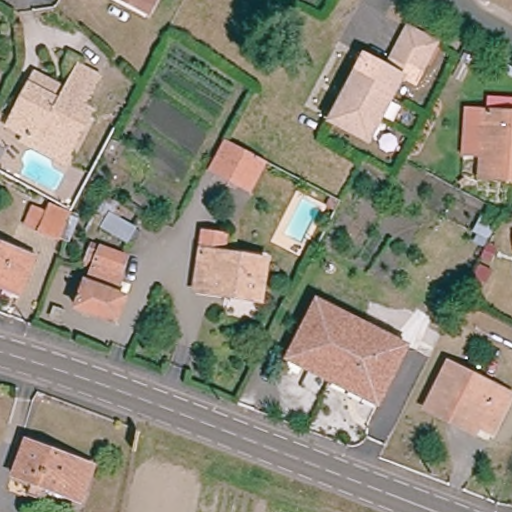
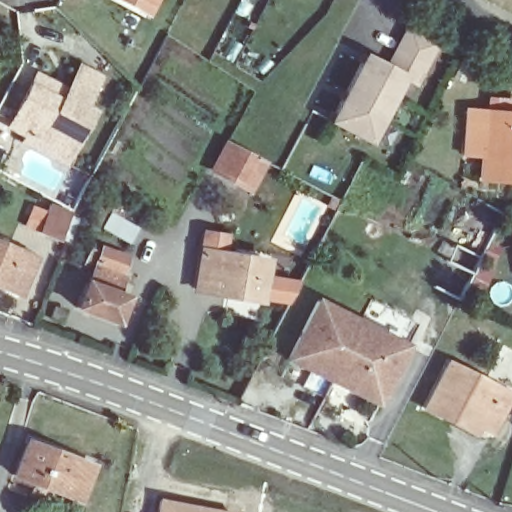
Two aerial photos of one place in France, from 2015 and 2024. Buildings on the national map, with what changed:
unchanged [(156,0),(149,13),(124,0),(156,0)]
unchanged [(391,71),(399,58),(405,44),(412,31),(441,46),(435,60),(428,72),(421,86),(407,79),(395,103),(357,82),(369,60),(391,71)]
unchanged [(46,155),(22,141),(27,132),(12,123),(36,75),(55,85),(66,91),(79,67),(97,77),(79,110),(87,115),(79,132),(67,153),(62,163),(46,155)]
unchanged [(384,123),(346,104),(357,82),(395,103),(384,123)]
unchanged [(346,104),(384,123),(373,145),(334,125),(346,104)]
unchanged [(485,180),(486,158),(467,157),(469,112),(487,113),(512,115),(512,182),(485,180)]
unchanged [(250,189),(241,184),(216,170),(212,168),(226,141),(230,143),(255,157),(265,163),(250,189)]
unchanged [(33,231),(40,213),(55,219),(59,210),(79,218),(68,246),(49,238),(33,231)]
unchanged [(200,270),(204,250),(207,232),(227,235),(223,253),(268,262),(261,301),(242,297),(197,287),(200,270)]
unchanged [(20,291),(0,283),(0,244),(33,257),(20,291)]
unchanged [(75,308),(85,281),(87,281),(92,267),(83,263),(88,250),(98,253),(100,249),(126,258),(119,274),(122,276),(115,293),(124,296),(114,321),(75,308)]
unchanged [(363,396),(351,390),(289,359),(318,301),(329,307),(407,346),(385,390),(379,404),(363,396)]
unchanged [(447,415),(430,405),(452,360),(508,391),(490,427),(476,421),(472,428),(447,415)]
unchanged [(96,467),(82,501),(19,476),(32,443),(96,467)]
new [(158,497),(232,511),(232,512),(154,512),(158,497)]

